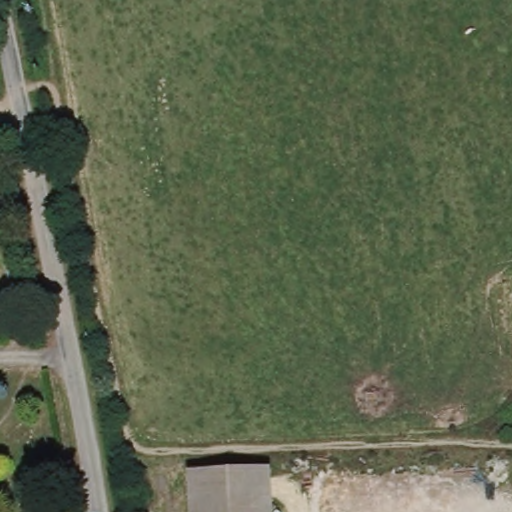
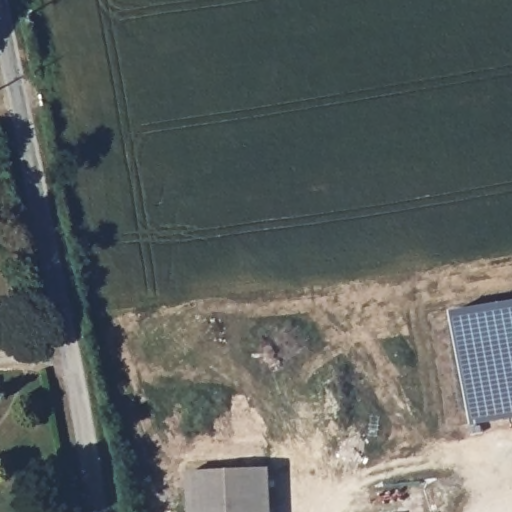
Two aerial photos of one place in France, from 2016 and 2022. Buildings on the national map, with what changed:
new [(452,311),(512,302),(512,417),(470,423),(452,311)]
unchanged [(270,512),(184,512),(182,475),(268,471),(270,512)]

